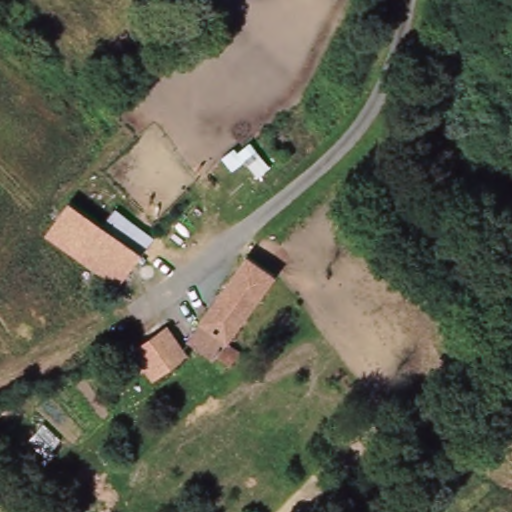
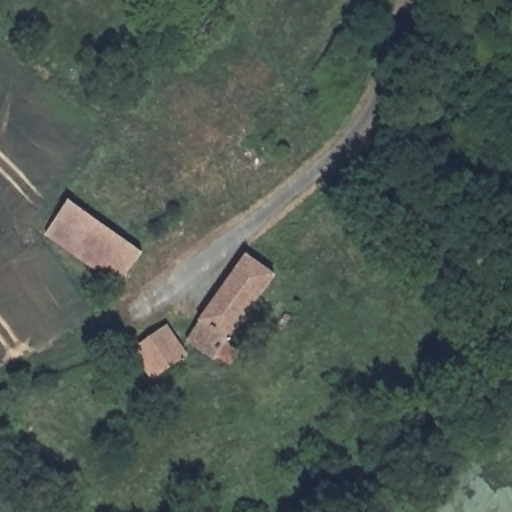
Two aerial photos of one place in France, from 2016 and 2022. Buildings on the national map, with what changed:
unchanged [(271,137),(268,135),(277,124),(294,136),(287,144),(291,147),(282,157),(267,145),(271,137)]
unchanged [(70,201),(144,254),(121,286),(48,234),(70,201)]
unchanged [(272,272),(273,276),(268,283),(250,308),(225,342),(238,352),(228,365),(217,357),(211,361),(185,341),(247,255),(272,272)]
unchanged [(281,316),(289,322),(283,328),(276,321),(281,316)]
unchanged [(163,327),(184,355),(175,362),(151,378),(130,351),(163,327)]

